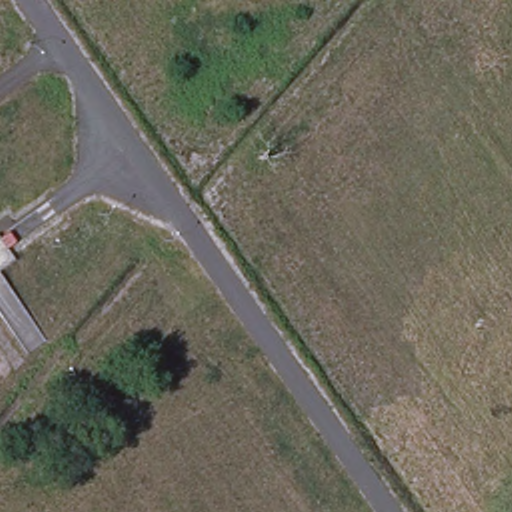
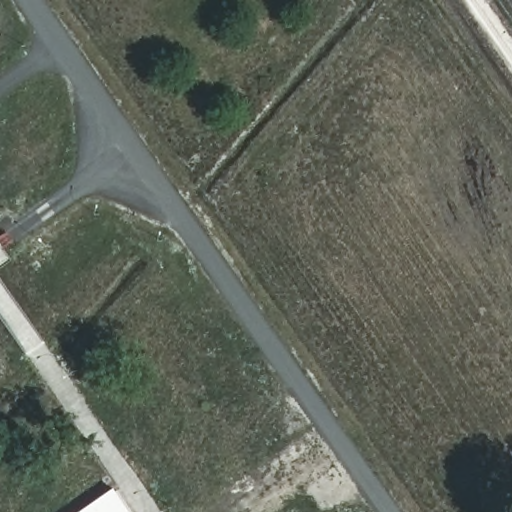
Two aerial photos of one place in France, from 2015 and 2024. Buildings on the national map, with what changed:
new [(136,512),(81,512),(118,486),(136,512)]

